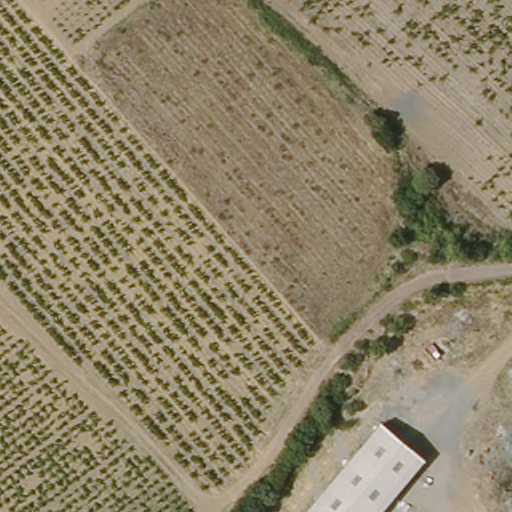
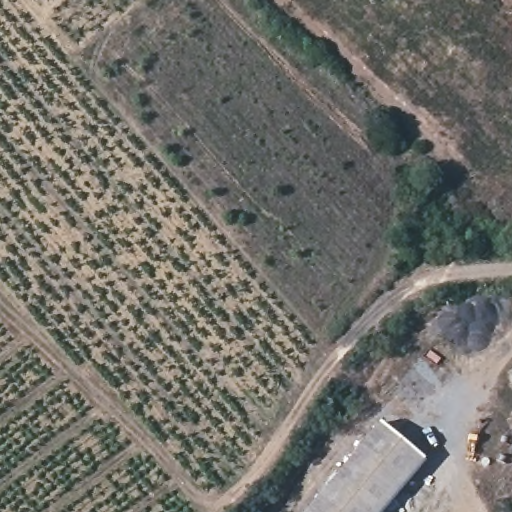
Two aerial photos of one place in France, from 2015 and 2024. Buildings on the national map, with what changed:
unchanged [(435,459),(389,512),(309,512),(387,419),(435,459)]

